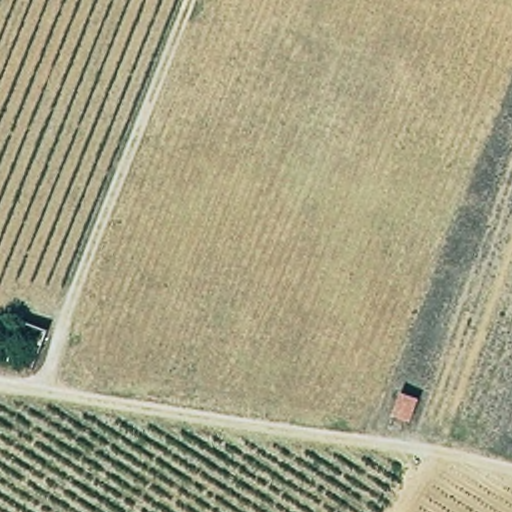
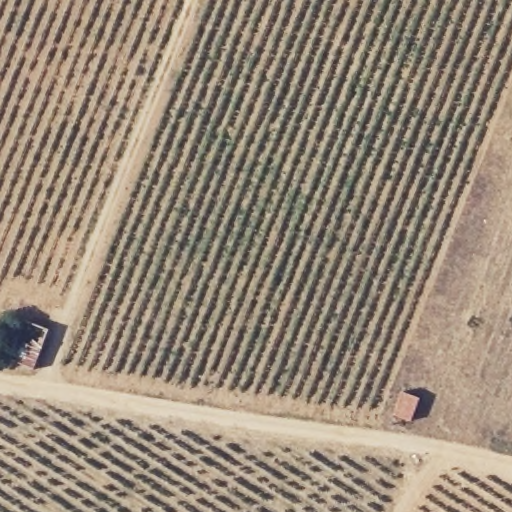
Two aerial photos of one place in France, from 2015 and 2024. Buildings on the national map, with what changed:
unchanged [(424,391),(410,422),(387,412),(400,388),(424,391)]

